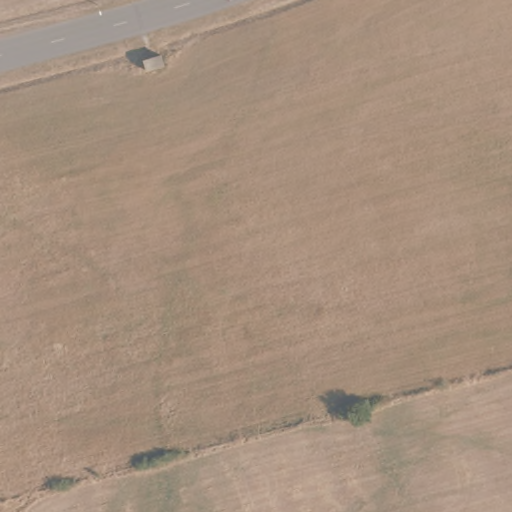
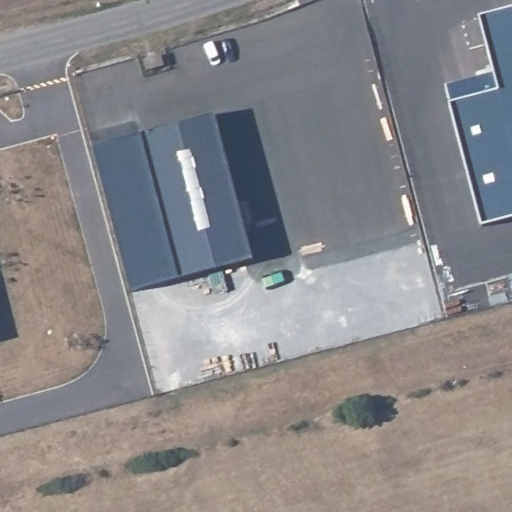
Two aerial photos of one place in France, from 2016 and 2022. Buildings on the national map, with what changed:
new [(478,17),(512,8),(512,219),(481,227),(449,103),(496,91),(478,17)]
unchanged [(141,60),(159,55),(162,65),(144,70),(141,60)]
new [(139,134),(212,115),(250,259),(178,280),(139,134)]

